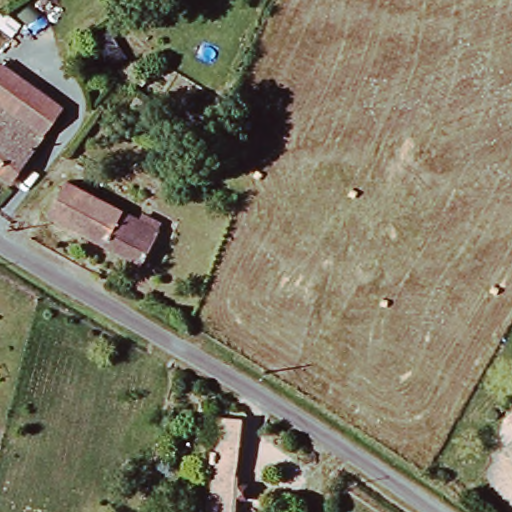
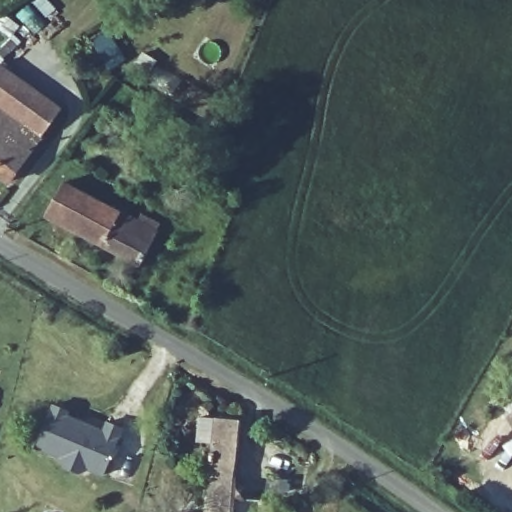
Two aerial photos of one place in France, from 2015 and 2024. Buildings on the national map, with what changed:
unchanged [(161,6),(165,0),(173,0),(184,6),(179,17),(161,6)]
unchanged [(58,114),(44,137),(0,105),(0,69),(58,114)]
unchanged [(44,137),(10,184),(0,177),(0,105),(44,137)]
unchanged [(140,263),(47,215),(63,183),(157,232),(140,263)]
unchanged [(205,486),(207,484),(209,453),(206,452),(207,442),(212,441),(213,434),(211,432),(213,407),(237,410),(235,434),(233,435),(230,464),(232,468),(227,512),(202,512),(205,486)]
new [(45,409),(61,415),(59,419),(96,434),(100,425),(116,431),(97,478),(82,472),(74,476),(58,470),(54,461),(29,451),(45,409)]
unchanged [(512,416),(512,422),(509,418),(512,416)]

